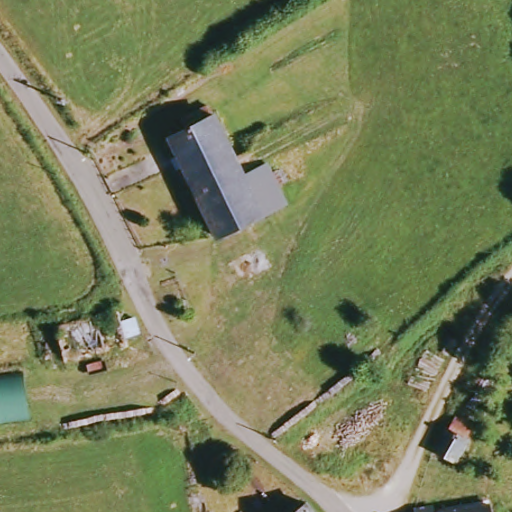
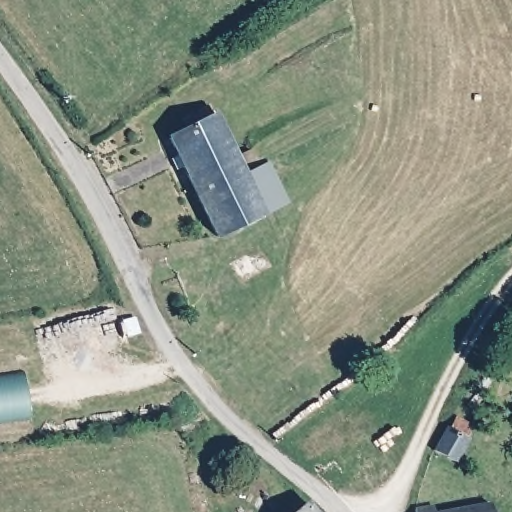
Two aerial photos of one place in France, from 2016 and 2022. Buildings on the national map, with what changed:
unchanged [(221,245),(168,144),(192,133),(186,124),(212,110),(218,119),(240,159),(263,149),(291,211),(221,245)]
unchanged [(32,334),(43,332),(108,313),(132,313),(140,334),(132,337),(132,348),(122,351),(63,367),(45,372),(32,334)]
unchanged [(0,422),(0,374),(22,371),(28,418),(0,422)]
unchanged [(450,426),(455,418),(462,417),(465,422),(463,431),(470,434),(457,456),(435,444),(445,423),(450,426)]
unchanged [(309,499),(318,509),(321,512),(292,512),(309,499)]
unchanged [(487,507),(488,512),(422,512),(487,507)]

